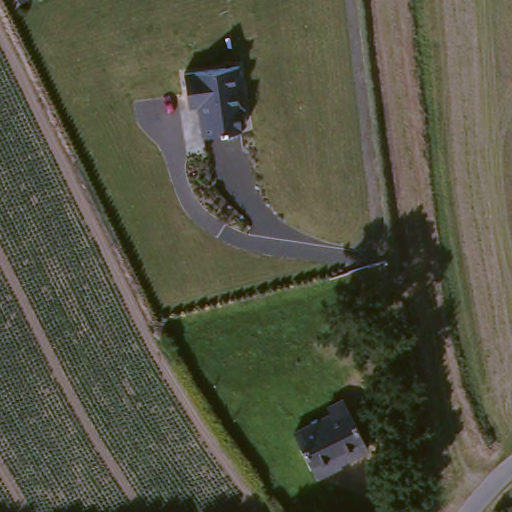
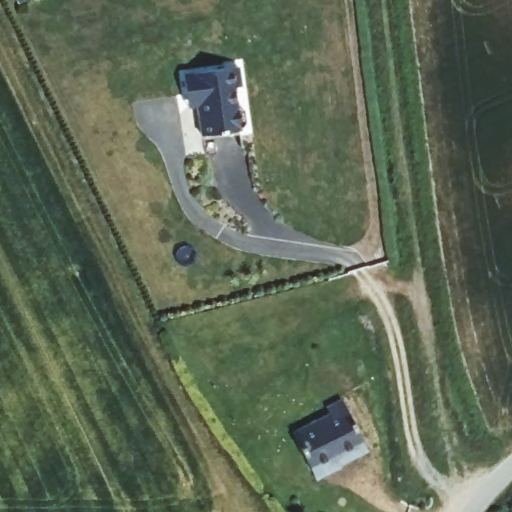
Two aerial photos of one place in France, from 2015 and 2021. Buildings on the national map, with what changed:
unchanged [(232,70),(234,90),(228,91),(231,110),(233,110),(238,114),(240,126),(236,131),(234,132),(234,134),(196,140),(191,109),(181,111),(179,98),(176,78),(232,70)]
unchanged [(374,451),(339,467),(337,460),(314,471),(296,431),(333,414),(330,404),(347,396),(374,451)]

